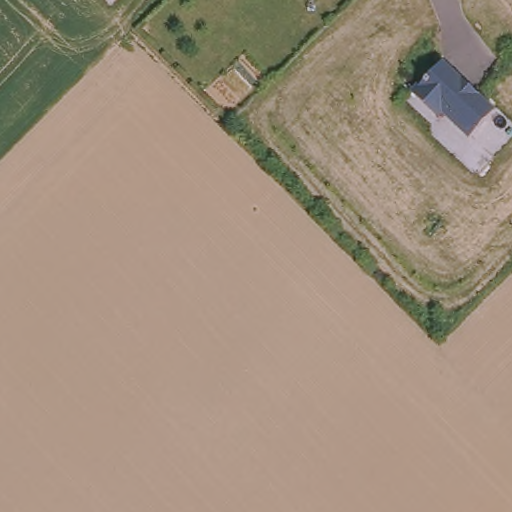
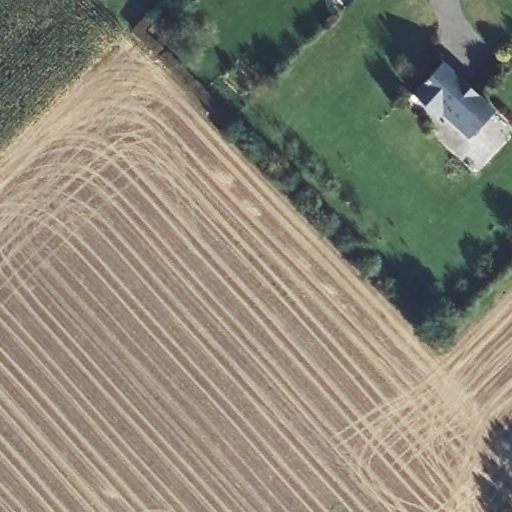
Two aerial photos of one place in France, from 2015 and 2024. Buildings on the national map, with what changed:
unchanged [(444,62),(498,108),(477,134),(447,109),(442,115),(417,94),(444,62)]

